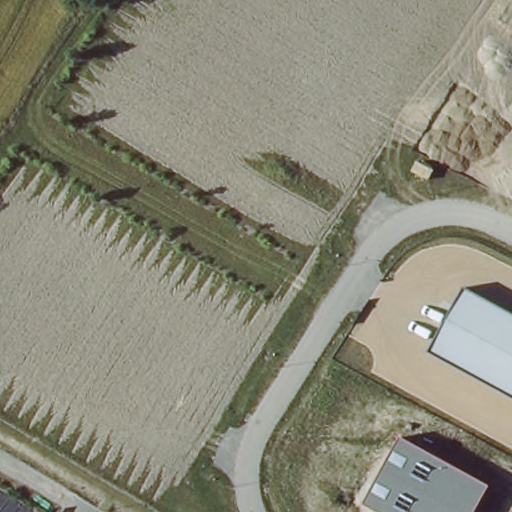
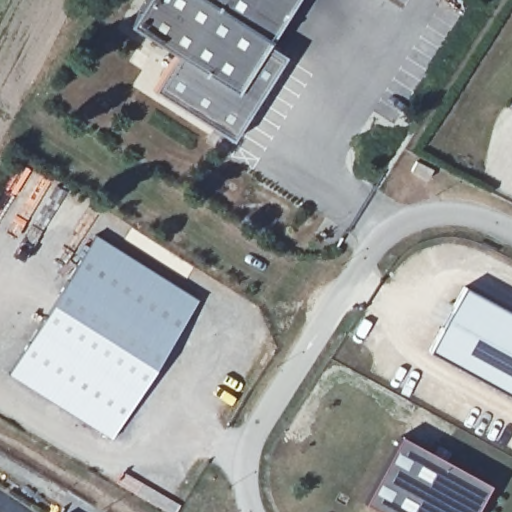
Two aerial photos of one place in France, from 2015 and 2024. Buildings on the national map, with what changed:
new [(234,91),(129,25),(144,0),(293,0),(234,91)]
new [(176,55),(234,91),(266,43),(286,57),(232,140),(153,91),(176,55)]
new [(95,235),(197,298),(108,437),(9,373),(95,235)]
unchanged [(512,395),(433,351),(468,286),(512,311),(512,395)]
unchanged [(376,512),(365,506),(402,437),(490,486),(476,512),(376,512)]

